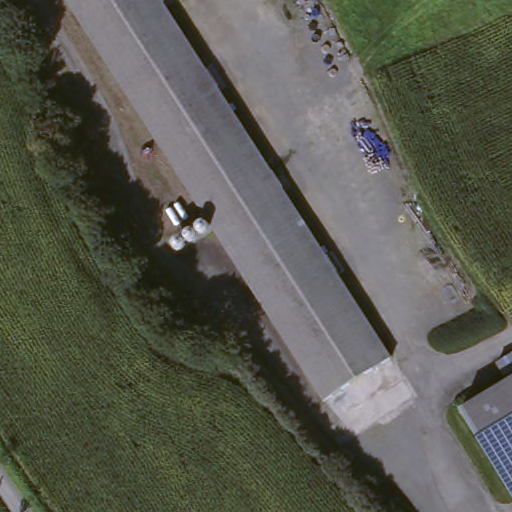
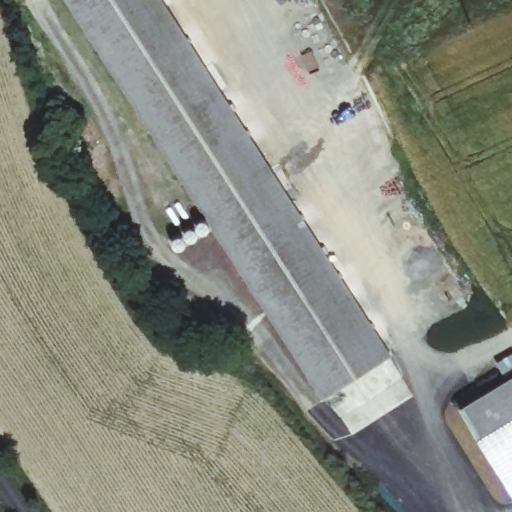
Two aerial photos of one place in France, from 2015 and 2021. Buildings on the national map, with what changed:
unchanged [(327,397),(73,0),(159,0),(388,358),(327,397)]
unchanged [(500,377),(491,364),(508,354),(512,360),(512,369),(500,377)]
unchanged [(460,406),(512,374),(512,491),(460,406)]

